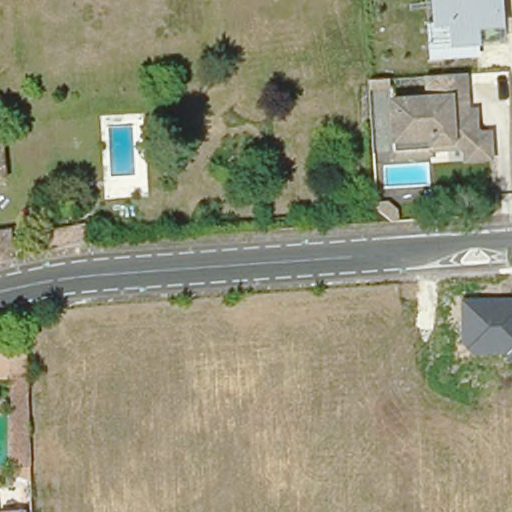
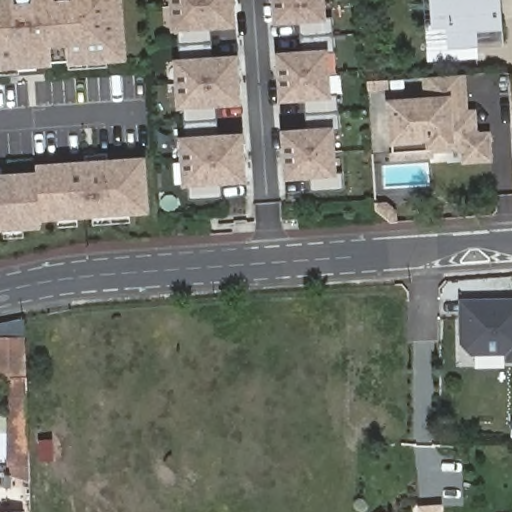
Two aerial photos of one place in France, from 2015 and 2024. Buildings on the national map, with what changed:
new [(42,72),(0,75),(0,0),(123,0),(127,59),(42,65),(42,72)]
new [(211,41),(178,43),(178,30),(172,31),(170,0),(235,0),(237,27),(211,28),(211,41)]
new [(331,0),(333,33),(303,35),(302,23),(273,25),(271,0),(331,0)]
unchanged [(478,43),(480,59),(429,62),(426,24),(431,23),(429,0),(502,0),(504,42),(478,43)]
new [(274,51),(304,49),(303,35),(333,33),(339,111),(308,112),(308,101),(278,102),(274,51)]
new [(216,107),(216,119),(185,121),(184,107),(177,108),(173,59),(180,58),(178,43),(211,41),(212,56),(239,54),(242,105),(216,107)]
unchanged [(419,95),(418,76),(461,72),(466,107),(475,112),(476,128),(491,129),(492,156),(462,159),(460,150),(433,152),(433,157),(391,162),(389,146),(384,97),(419,95)]
new [(279,129),(310,126),(308,112),(339,111),(344,188),(311,191),(312,178),(283,180),(279,129)]
new [(248,184),(221,185),(221,197),(190,199),(189,187),(181,187),(178,136),(186,136),(185,121),(216,119),(218,133),(244,132),(248,184)]
new [(36,170),(36,163),(146,155),(150,212),(39,220),(36,170)]
demolished [(1,179),(0,179),(0,163),(1,179)]
new [(39,220),(40,227),(0,230),(0,173),(36,170),(39,220)]
demolished [(72,246),(69,232),(69,230),(86,227),(89,242),(72,246)]
demolished [(9,233),(11,252),(18,251),(20,258),(0,262),(0,235),(9,233)]
demolished [(46,251),(43,238),(57,236),(59,248),(46,251)]
unchanged [(504,355),(470,355),(461,343),(461,297),(512,296),(512,362),(504,362),(504,355)]
new [(9,378),(0,379),(0,323),(23,318),(24,337),(26,378),(9,378)]
unchanged [(26,378),(27,402),(29,467),(11,468),(9,378),(26,378)]
new [(417,506),(442,503),(443,512),(418,512),(417,506)]
unchanged [(19,510),(19,512),(0,512),(0,510),(19,510)]

